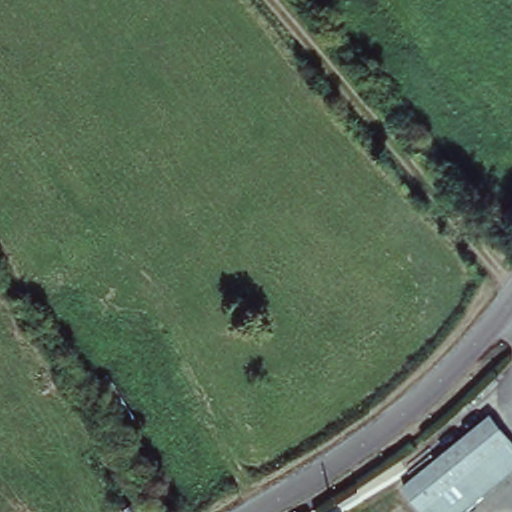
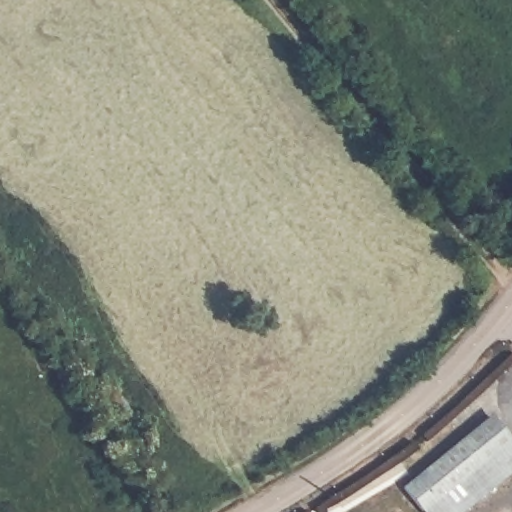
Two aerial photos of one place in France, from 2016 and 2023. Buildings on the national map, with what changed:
unchanged [(402,483),(488,412),(512,441),(512,462),(451,512),(426,512),(419,503),(402,483)]

